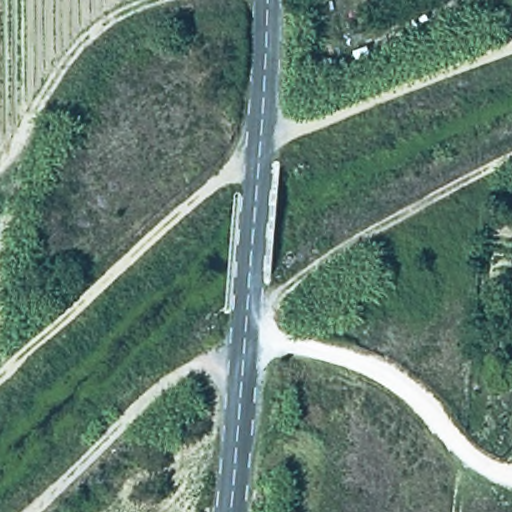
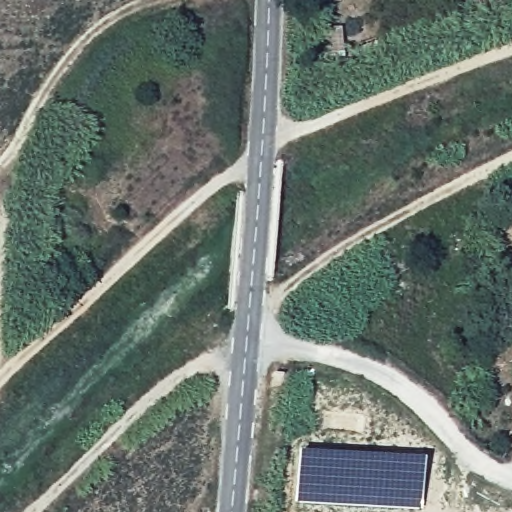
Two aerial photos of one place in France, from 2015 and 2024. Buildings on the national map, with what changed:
new [(297,452),(320,453),(362,451),(425,455),(422,510),(295,503),(297,452)]

